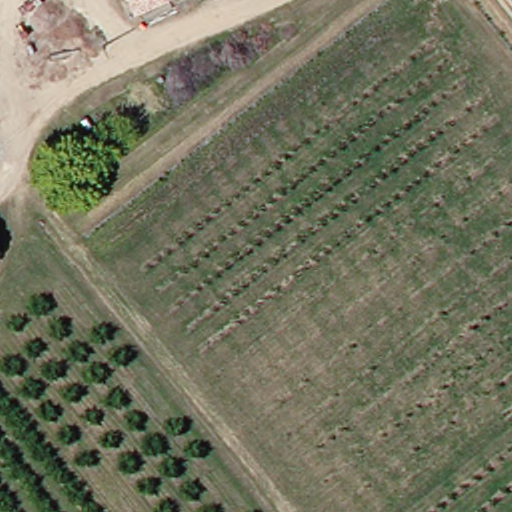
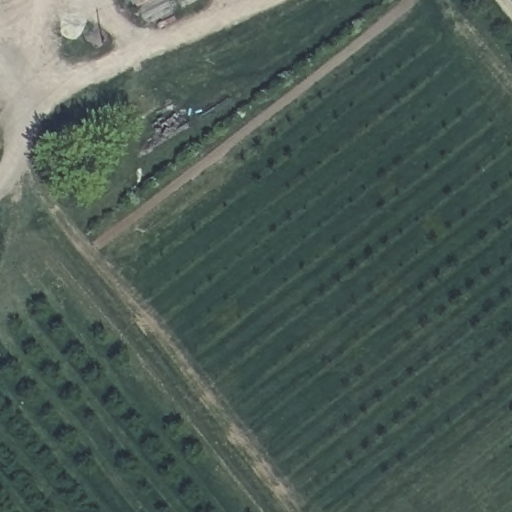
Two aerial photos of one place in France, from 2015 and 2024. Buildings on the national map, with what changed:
unchanged [(140,10),(135,0),(158,0),(140,10)]

